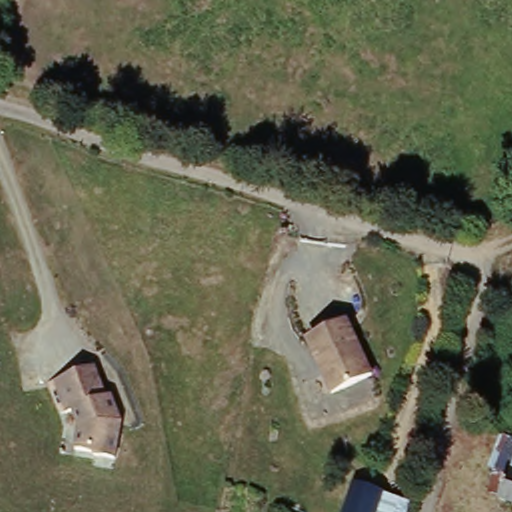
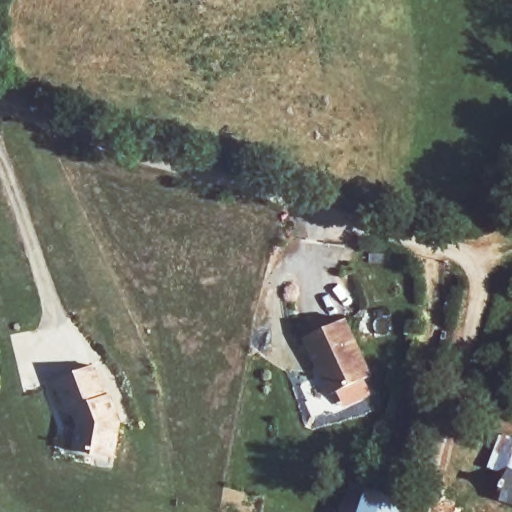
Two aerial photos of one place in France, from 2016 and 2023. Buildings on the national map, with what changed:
unchanged [(301,346),(345,326),(373,384),(327,404),(301,346)]
unchanged [(73,459),(75,442),(69,419),(59,423),(47,390),(93,373),(103,402),(109,400),(121,428),(115,468),(73,459)]
unchanged [(494,466),(509,429),(512,430),(512,502),(500,498),(511,470),(494,466)]
unchanged [(387,489),(378,512),(342,512),(352,480),(387,489)]

